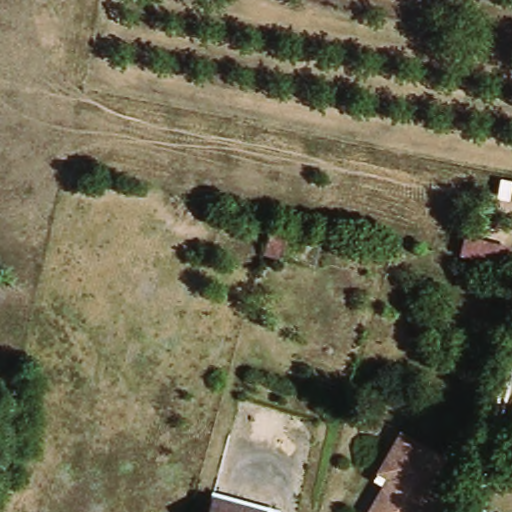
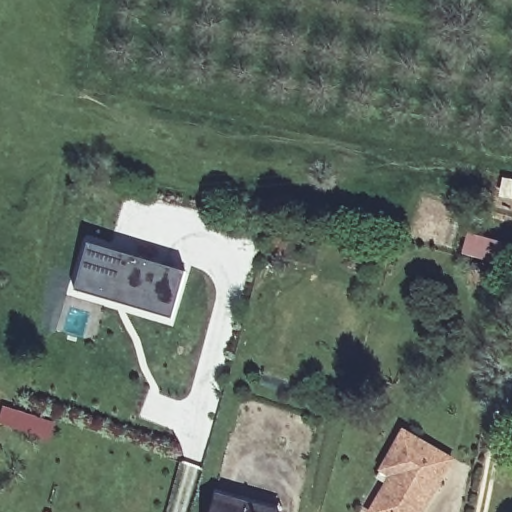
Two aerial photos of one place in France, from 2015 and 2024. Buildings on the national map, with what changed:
unchanged [(286,262),(270,257),(277,233),(293,239),(286,262)]
unchanged [(512,268),(465,254),(468,236),(512,247),(512,268)]
new [(185,272),(172,319),(75,290),(90,244),(185,272)]
unchanged [(447,461),(422,512),(378,512),(393,482),(379,474),(389,456),(400,435),(447,461)]
unchanged [(217,497),(277,512),(213,512),(217,497)]

